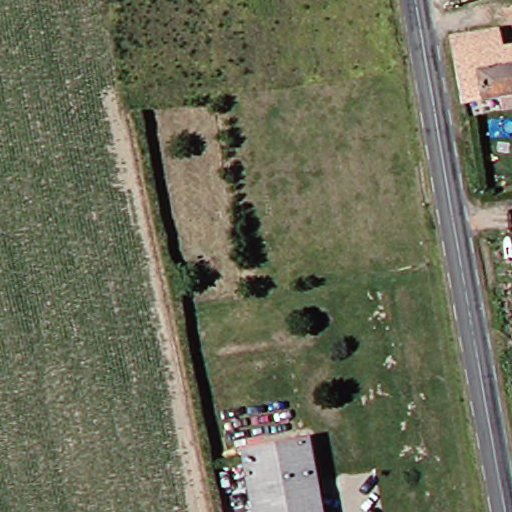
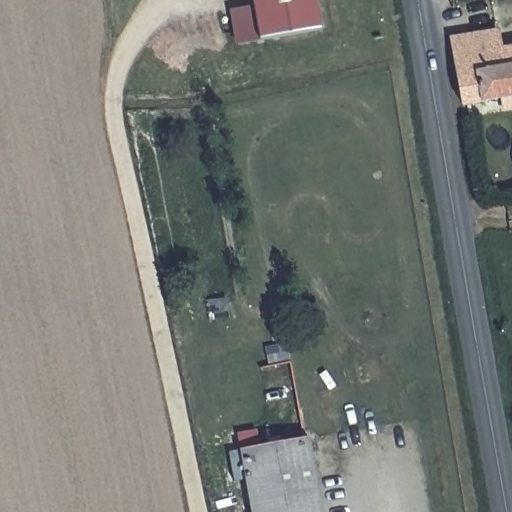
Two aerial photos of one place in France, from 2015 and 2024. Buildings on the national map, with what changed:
new [(325,31),(262,40),(256,0),(320,0),(325,31)]
unchanged [(452,38),(497,30),(501,49),(512,47),(512,105),(505,106),(502,94),(463,101),(452,38)]
unchanged [(512,177),(512,190),(510,178),(512,177)]
unchanged [(310,444),(323,512),(253,512),(242,456),(310,444)]

